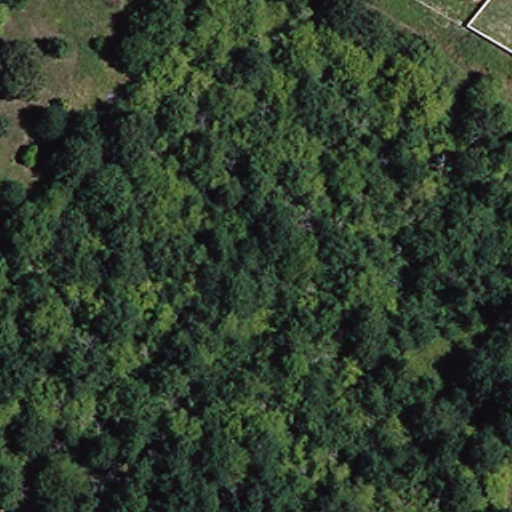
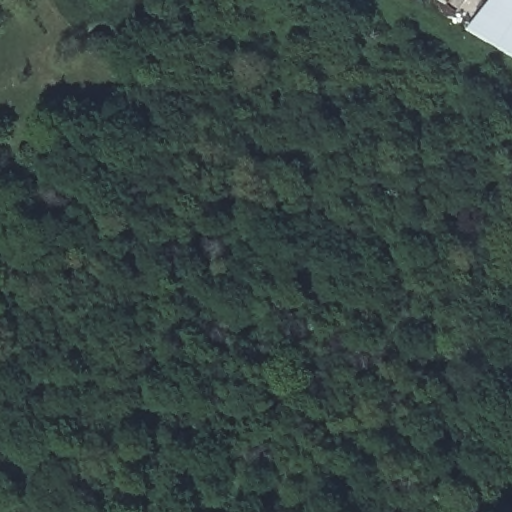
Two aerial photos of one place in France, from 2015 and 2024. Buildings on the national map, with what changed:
new [(491,0),(512,0),(512,57),(466,30),(491,0)]

